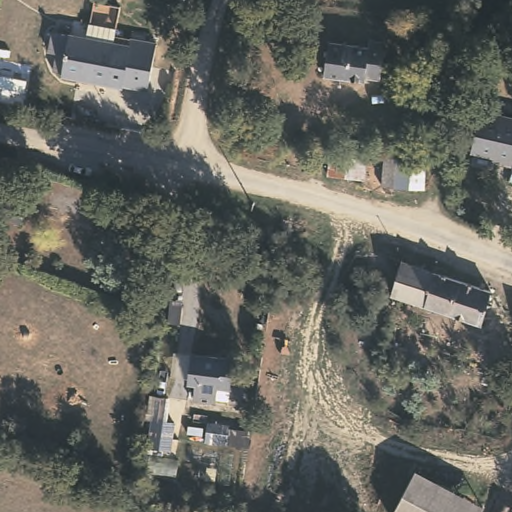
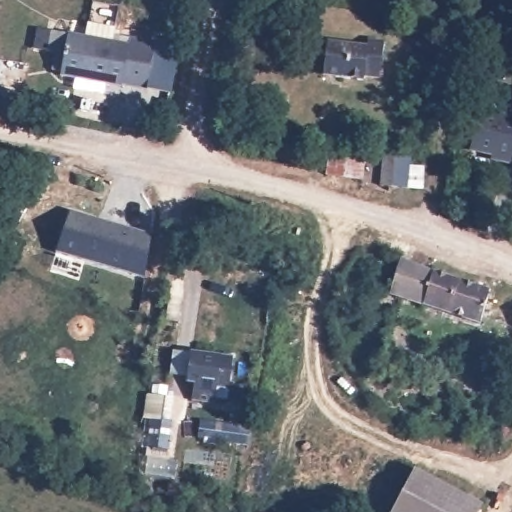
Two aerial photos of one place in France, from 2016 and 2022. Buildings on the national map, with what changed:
unchanged [(123,94),(61,82),(66,59),(50,56),(53,38),(69,39),(85,43),(89,29),(115,32),(113,47),(131,51),(123,92),(123,94)]
unchanged [(384,42),(380,79),(363,76),(361,81),(323,77),(327,42),(367,47),(367,40),(384,42)]
unchanged [(156,50),(148,96),(123,92),(131,51),(131,46),(156,50)]
unchanged [(505,147),(504,155),(489,152),(490,148),(467,144),(473,112),(512,119),(512,149),(505,147)]
unchanged [(410,166),(423,167),(423,191),(407,190),(392,187),(377,185),(379,157),(394,159),(409,157),(410,166)]
demolished [(51,177),(47,191),(30,185),(33,171),(51,177)]
demolished [(49,192),(106,207),(102,221),(46,206),(49,192)]
unchanged [(20,222),(0,212),(0,201),(3,196),(26,207),(20,222)]
new [(55,250),(68,209),(156,235),(143,277),(55,250)]
unchanged [(491,292),(480,325),(389,295),(400,260),(491,292)]
unchanged [(196,372),(186,371),(190,346),(229,352),(224,382),(211,380),(208,396),(193,393),(196,372)]
unchanged [(174,400),(173,413),(164,413),(163,426),(149,425),(151,397),(174,400)]
unchanged [(461,492),(491,511),(490,512),(401,512),(427,472),(461,492)]

